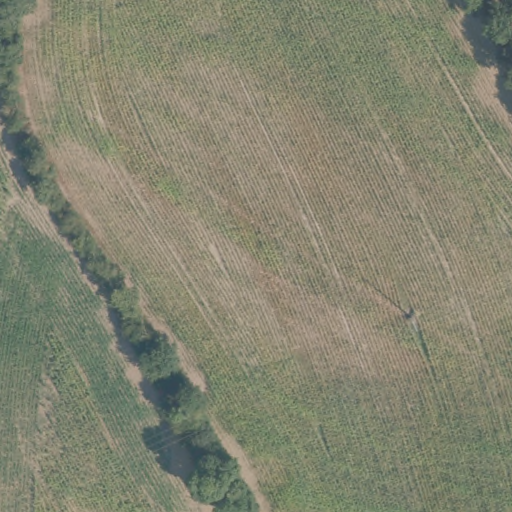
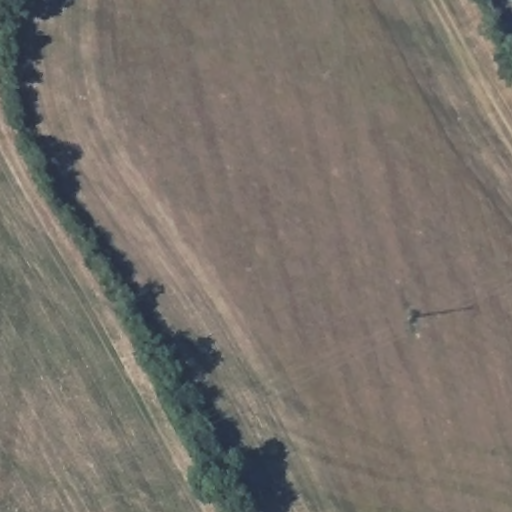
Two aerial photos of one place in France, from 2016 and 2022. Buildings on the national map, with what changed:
[]

